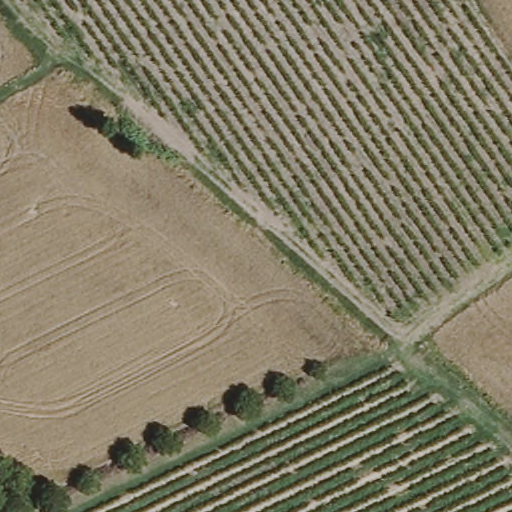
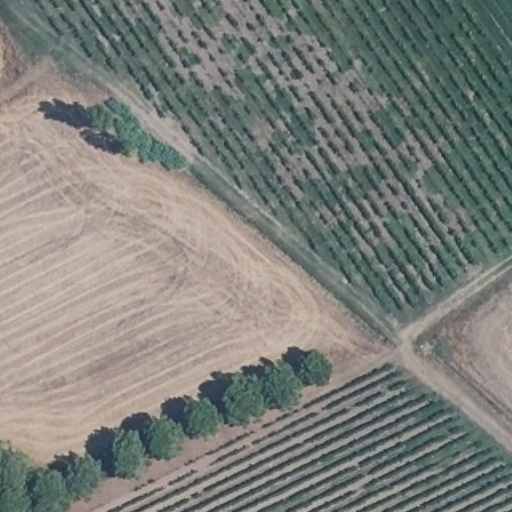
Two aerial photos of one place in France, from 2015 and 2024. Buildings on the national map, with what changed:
[]

